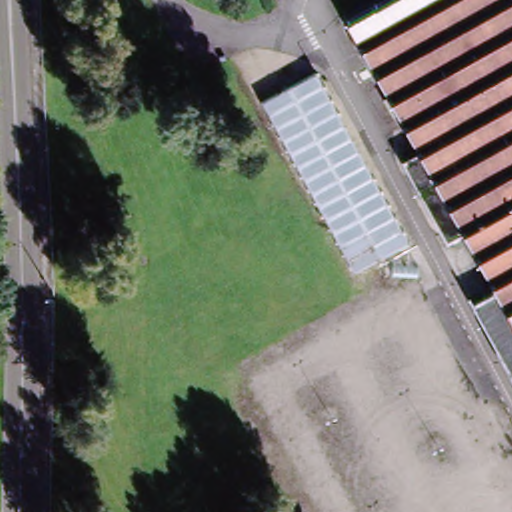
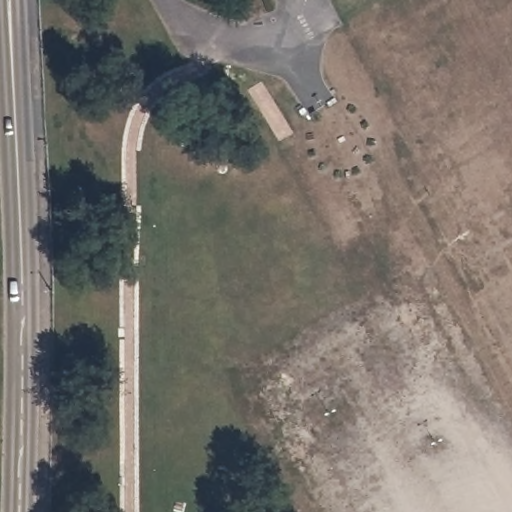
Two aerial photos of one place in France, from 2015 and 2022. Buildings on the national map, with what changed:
demolished [(473,302),(497,290),(470,237),(450,247),(404,161),(422,151),(351,20),(387,0),(512,0),(512,374),(473,302)]
demolished [(265,106),(320,76),(411,248),(356,277),(265,106)]

